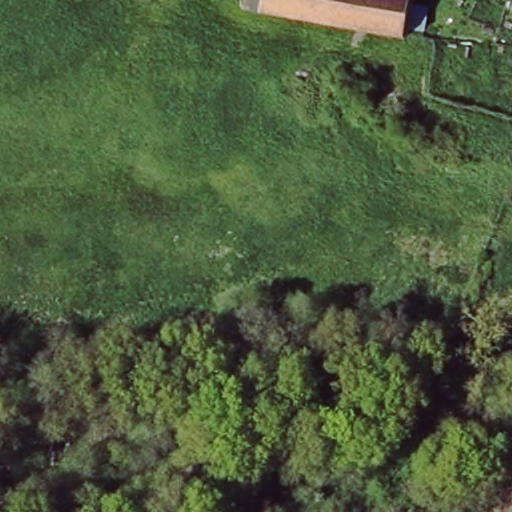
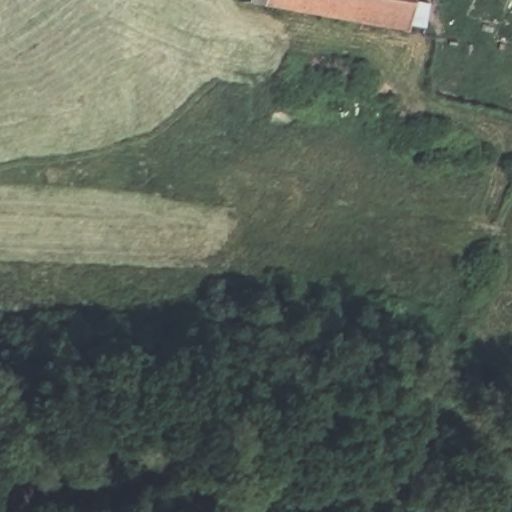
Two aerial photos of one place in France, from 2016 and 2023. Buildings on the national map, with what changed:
unchanged [(260,0),(421,0),(418,25),(259,11),(260,0)]

